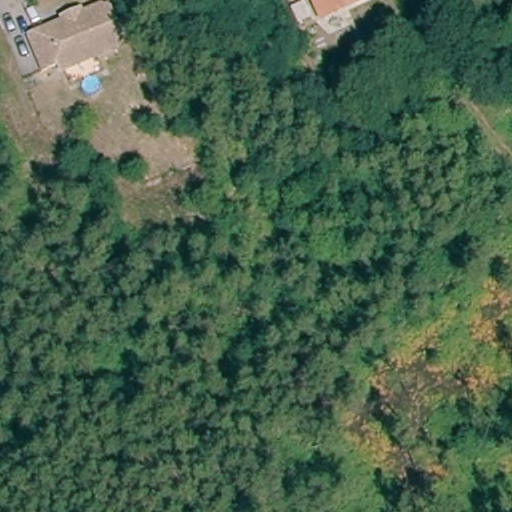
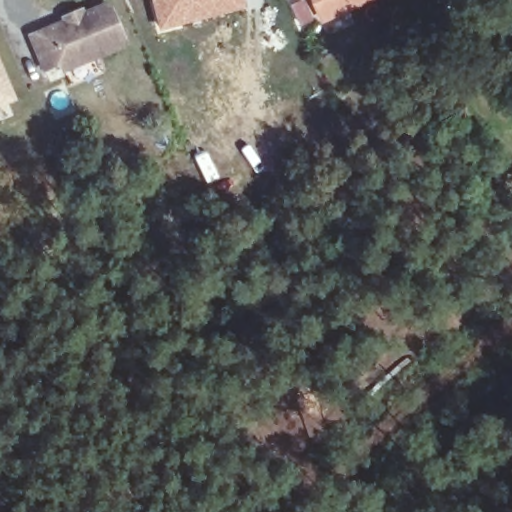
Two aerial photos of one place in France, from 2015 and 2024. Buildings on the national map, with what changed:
new [(246,11),(160,32),(150,0),(243,0),(246,11)]
unchanged [(322,20),(312,0),(364,0),(322,20)]
unchanged [(110,15),(122,43),(118,52),(62,74),(60,67),(45,73),(31,40),(67,26),(66,22),(80,17),(81,20),(103,12),(110,15)]
new [(17,102),(0,109),(0,62),(17,102)]

